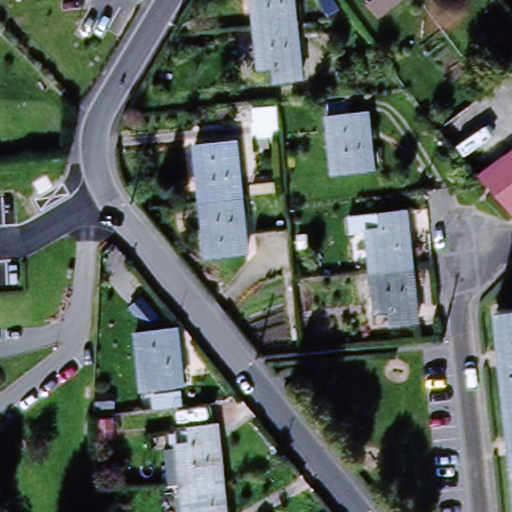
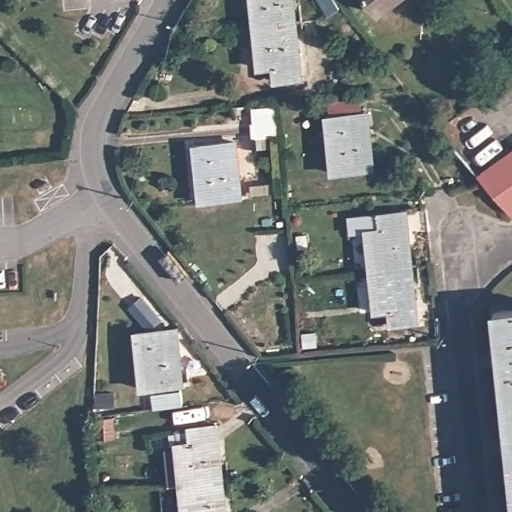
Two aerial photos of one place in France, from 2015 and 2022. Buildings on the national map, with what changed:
unchanged [(257,0),(298,0),(301,23),(260,27),(257,0)]
unchanged [(334,0),(339,9),(328,15),(320,0),(334,0)]
unchanged [(369,0),(398,0),(380,14),(369,0)]
unchanged [(301,23),(307,78),(280,81),(279,67),(265,68),(260,27),(301,23)]
unchanged [(326,118),(367,113),(374,169),(332,173),(326,118)]
unchanged [(200,202),(195,146),(236,143),(242,198),(200,202)]
unchanged [(486,178),(512,159),(512,214),(486,178)]
demolished [(242,198),(247,253),(206,257),(200,202),(242,198)]
unchanged [(366,270),(362,230),(348,232),(347,218),(375,214),(402,212),(408,267),(366,270)]
unchanged [(408,267),(414,323),(387,324),(385,310),(371,311),(366,270),(408,267)]
unchanged [(492,312),(512,310),(512,496),(492,312)]
unchanged [(140,330),(179,325),(185,384),(146,389),(140,330)]
unchanged [(186,485),(182,445),(185,445),(183,431),(196,429),(222,426),(227,481),(201,484),(186,485)]
unchanged [(201,484),(227,481),(231,512),(189,512),(186,485),(201,484)]

